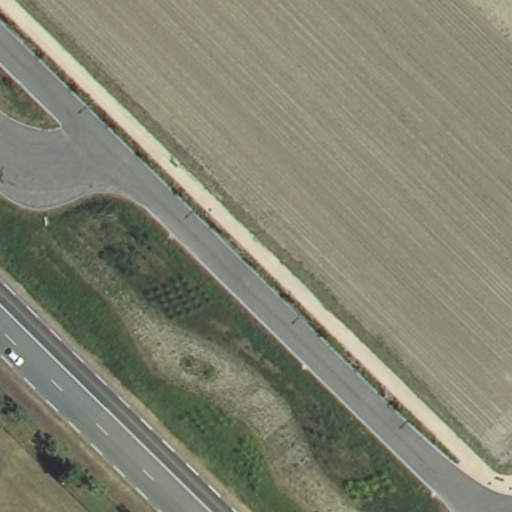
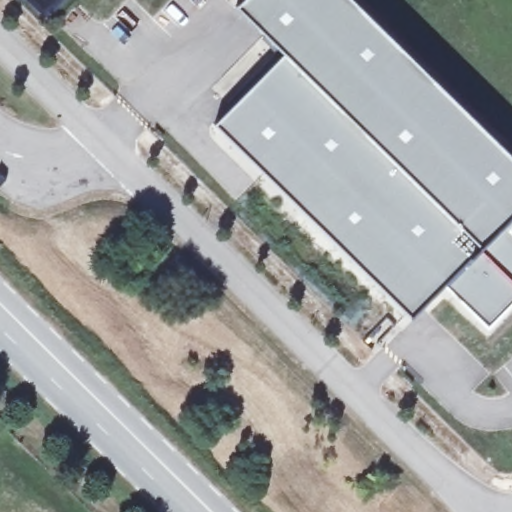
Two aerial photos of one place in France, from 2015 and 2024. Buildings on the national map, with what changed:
new [(244,0),(352,0),(512,157),(512,305),(489,329),(446,285),(412,318),(215,125),(283,56),(236,7),(244,0)]

